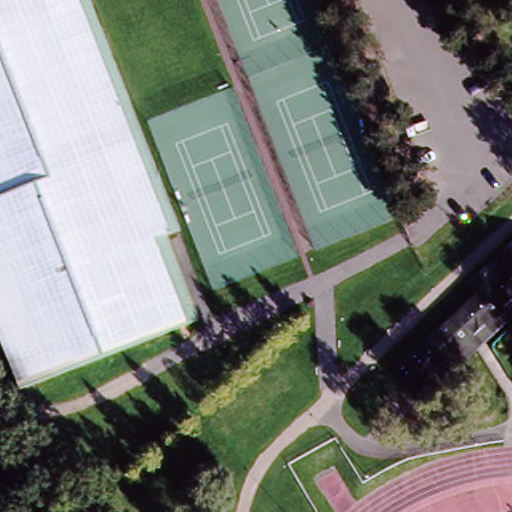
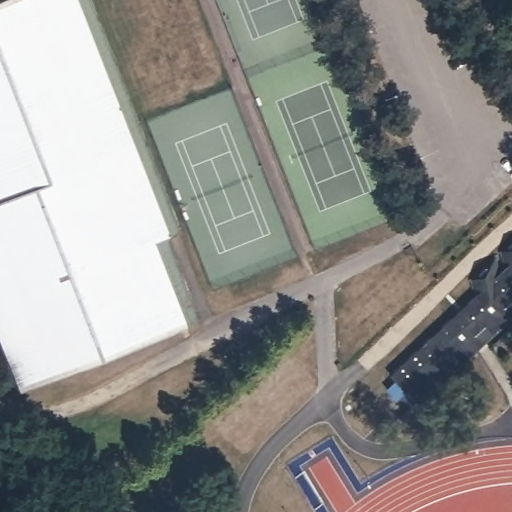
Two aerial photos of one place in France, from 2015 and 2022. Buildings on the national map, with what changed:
unchanged [(185,226),(172,231),(205,317),(17,390),(0,345),(0,0),(97,0),(185,226)]
unchanged [(410,396),(391,376),(480,293),(476,279),(492,264),(496,277),(510,264),(507,250),(512,246),(512,302),(410,396)]
unchanged [(501,325),(417,403),(410,396),(512,302),(512,314),(501,325)]

